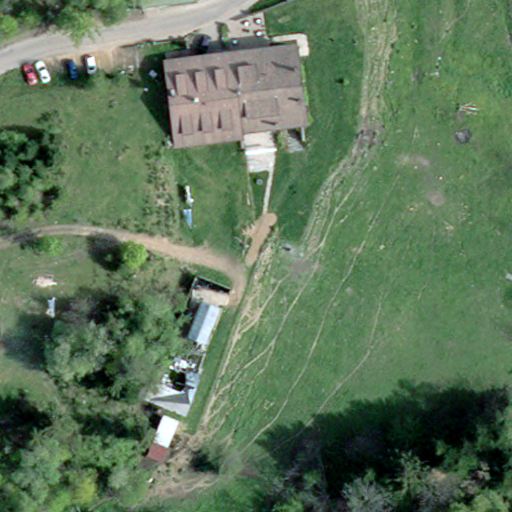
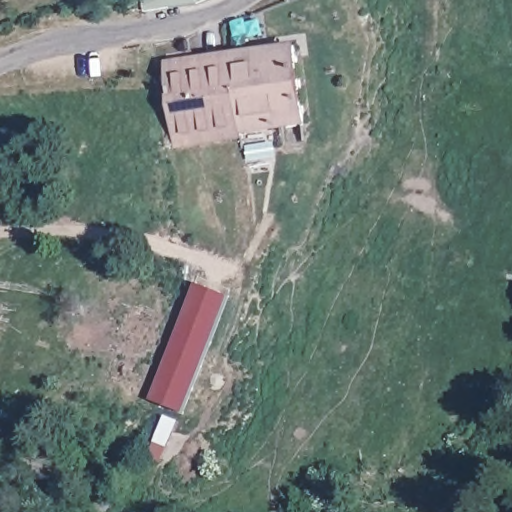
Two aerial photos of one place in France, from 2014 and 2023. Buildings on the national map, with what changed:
unchanged [(154,0),(201,0),(161,7),(154,0)]
unchanged [(200,147),(187,62),(296,47),(301,135),(200,147)]
unchanged [(200,147),(166,152),(156,84),(170,81),(168,64),(187,62),(200,147)]
demolished [(143,397),(193,271),(228,283),(181,411),(143,397)]
new [(181,419),(163,462),(147,456),(163,415),(181,419)]

